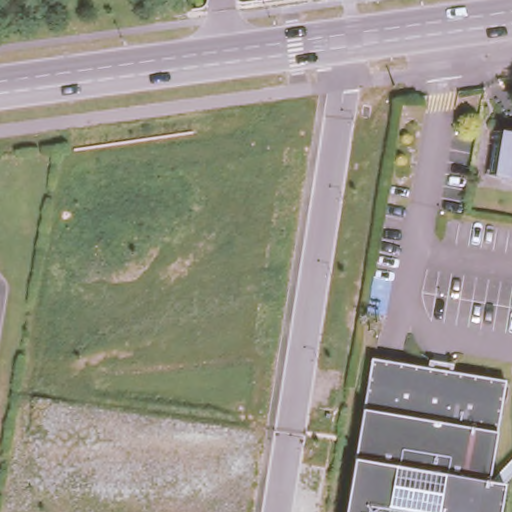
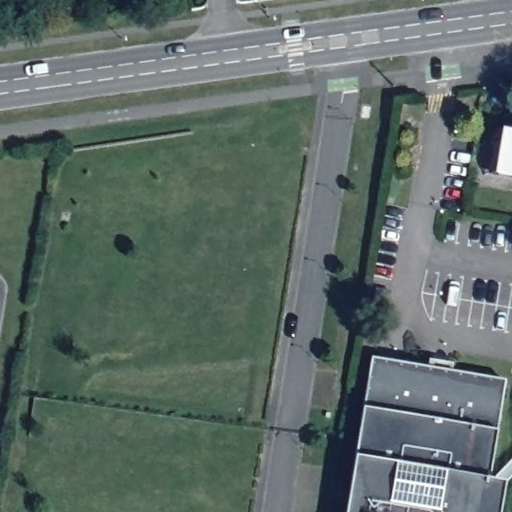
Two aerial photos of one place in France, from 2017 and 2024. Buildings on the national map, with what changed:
unchanged [(488,127),(512,131),(512,178),(481,174),(488,127)]
unchanged [(504,379),(489,481),(504,483),(499,512),(345,512),(370,357),(504,379)]

